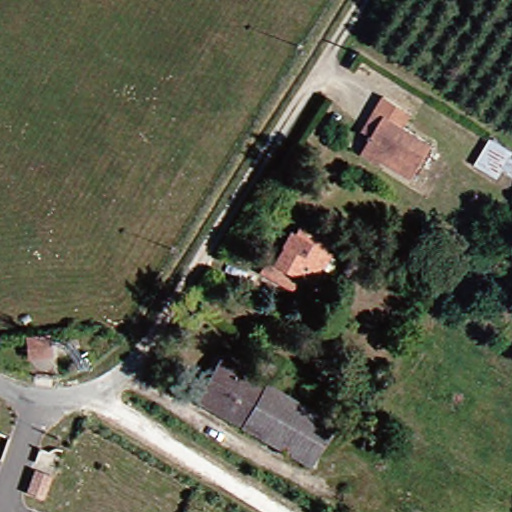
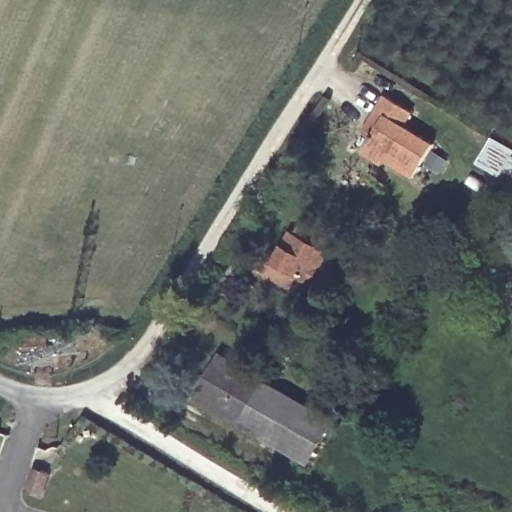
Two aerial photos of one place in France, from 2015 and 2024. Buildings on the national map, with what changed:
unchanged [(419,115),(410,129),(438,148),(417,181),(371,148),(377,138),(370,133),(382,114),(392,97),(419,115)]
unchanged [(512,147),(512,169),(507,178),(484,165),(501,139),(512,147)]
unchanged [(299,232),(337,254),(319,282),(303,273),(296,287),(275,276),(299,232)]
unchanged [(318,470),(204,403),(207,398),(231,356),(343,422),(321,463),(318,470)]

